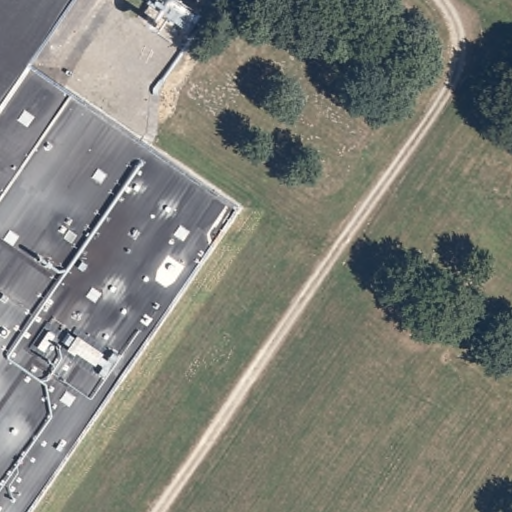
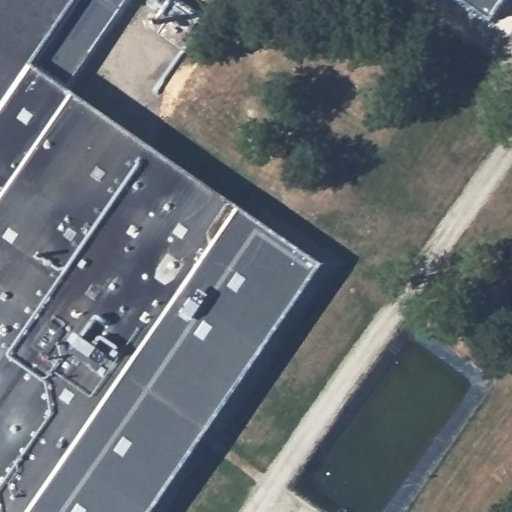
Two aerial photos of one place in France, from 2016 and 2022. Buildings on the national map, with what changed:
unchanged [(32,59),(0,41),(0,0),(75,0),(32,59)]
unchanged [(190,39),(148,10),(155,0),(172,0),(202,21),(204,22),(191,41),(190,39)]
new [(487,21),(456,0),(502,0),(487,21)]
unchanged [(227,9),(219,22),(209,15),(217,3),(227,9)]
unchanged [(37,62),(239,203),(27,512),(0,512),(0,41),(32,59),(37,62)]
new [(320,262),(147,512),(27,512),(239,203),(320,262)]

